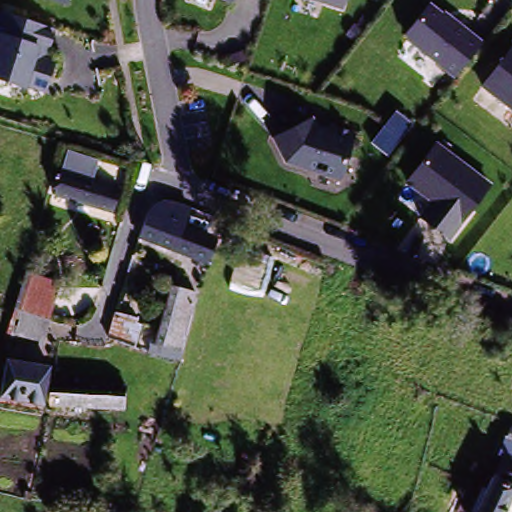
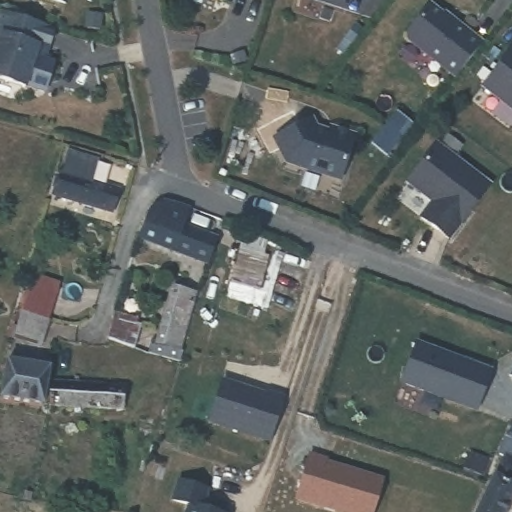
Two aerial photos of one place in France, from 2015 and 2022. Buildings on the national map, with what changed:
unchanged [(53,0),(68,0),(67,5),(53,0)]
unchanged [(227,0),(241,0),(240,4),(227,0)]
unchanged [(271,0),(276,0),(276,1),(271,0)]
unchanged [(311,0),(346,0),(343,11),(311,0)]
unchanged [(484,43),(455,80),(404,38),(431,1),(484,43)]
unchanged [(57,31),(51,61),(58,65),(48,96),(0,82),(0,32),(6,11),(57,31)]
unchanged [(512,47),(512,111),(481,88),(512,47)]
unchanged [(318,126),(355,135),(340,183),(285,164),(271,139),(314,118),(318,126)]
unchanged [(493,185),(449,242),(419,219),(431,204),(405,184),(436,143),(493,185)]
unchanged [(86,156),(79,178),(118,189),(109,214),(55,198),(69,151),(86,156)]
unchanged [(210,243),(202,265),(138,242),(145,221),(147,221),(210,243)]
unchanged [(30,278),(59,287),(49,323),(42,347),(3,337),(9,313),(19,316),(30,278)]
unchanged [(151,334),(156,335),(172,282),(196,289),(180,342),(184,343),(181,353),(179,359),(146,350),(151,334)]
unchanged [(107,339),(106,334),(107,329),(108,323),(112,316),(135,322),(127,347),(109,344),(107,339)]
new [(416,341),(494,370),(478,412),(400,383),(416,341)]
unchanged [(47,372),(39,409),(0,401),(0,385),(6,362),(47,372)]
new [(221,382),(265,397),(266,394),(284,400),(269,443),(208,423),(221,382)]
unchanged [(126,392),(123,413),(47,403),(48,397),(51,383),(126,392)]
unchanged [(153,427),(150,436),(137,432),(140,423),(153,427)]
unchanged [(498,512),(475,512),(497,466),(492,464),(495,456),(506,427),(512,429),(512,493),(509,492),(498,512)]
new [(311,455),(327,461),(326,463),(382,483),(372,512),(339,512),(296,497),(311,455)]
new [(188,503),(172,496),(180,477),(208,489),(200,506),(215,512),(184,512),(188,503)]

